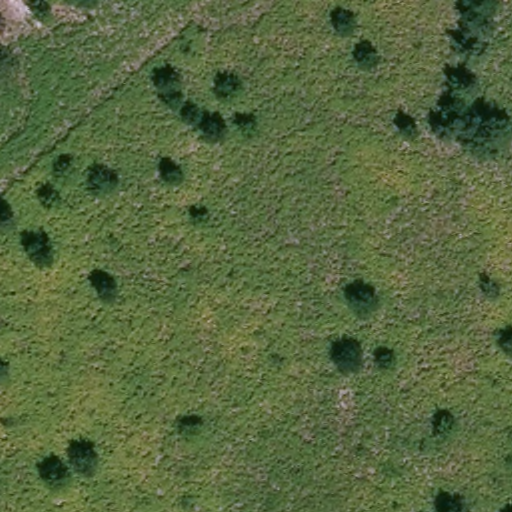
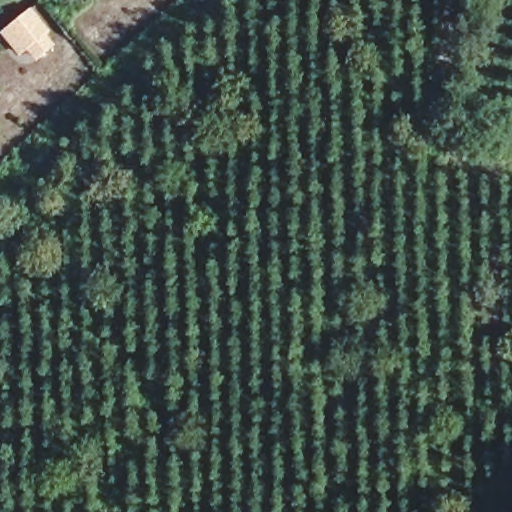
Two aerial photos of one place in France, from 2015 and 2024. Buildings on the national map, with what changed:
new [(38,63),(30,52),(21,59),(5,36),(32,15),(50,37),(46,40),(54,50),(38,63)]

